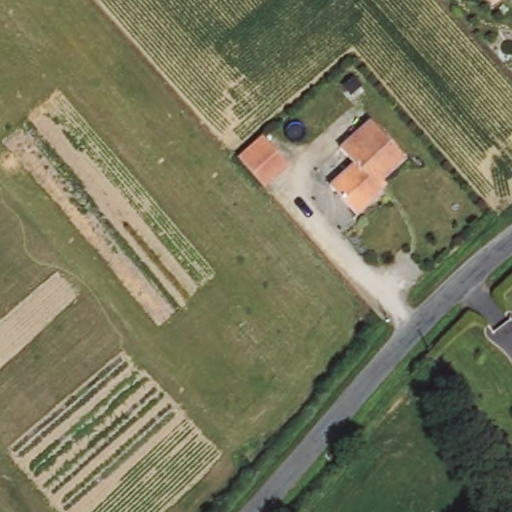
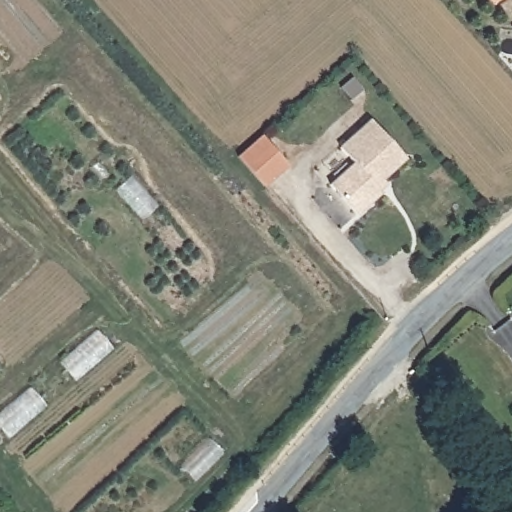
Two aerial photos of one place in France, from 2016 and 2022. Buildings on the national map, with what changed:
unchanged [(483,0),(499,0),(488,7),(483,0)]
unchanged [(347,161),(337,149),(367,121),(402,159),(372,186),(377,191),(353,213),(324,181),(347,161)]
unchanged [(257,133),(284,163),(262,184),(235,154),(257,133)]

